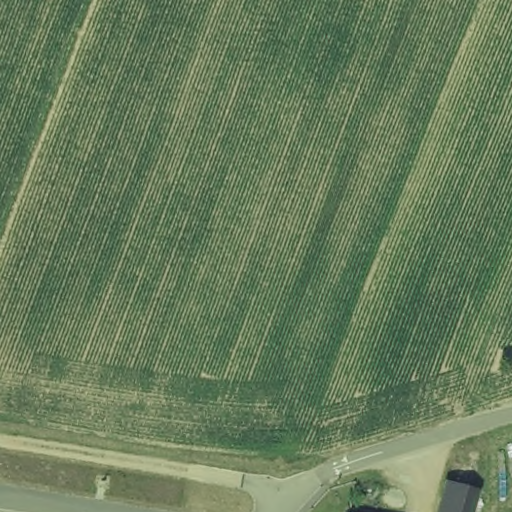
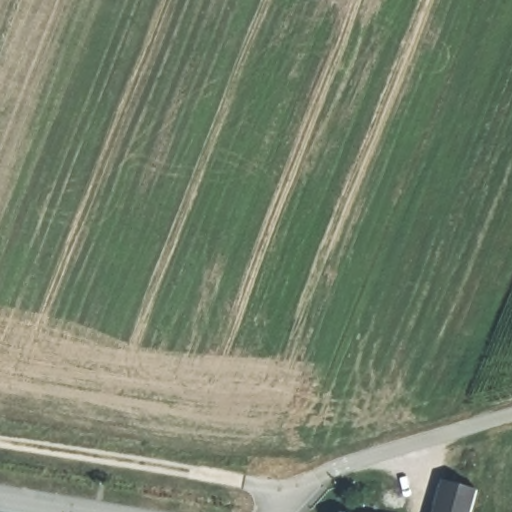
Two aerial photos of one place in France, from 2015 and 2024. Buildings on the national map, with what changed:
unchanged [(484,488),(478,512),(439,512),(449,478),(484,488)]

